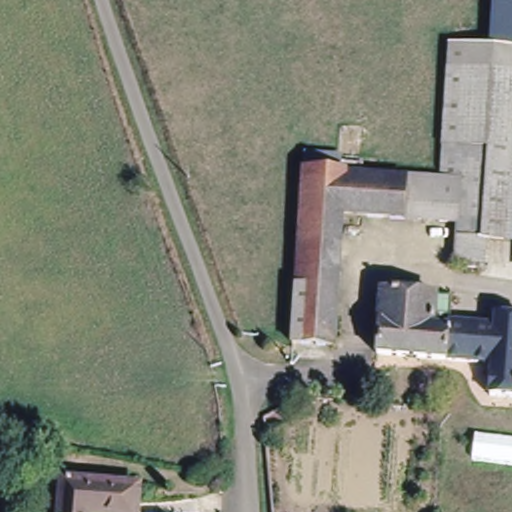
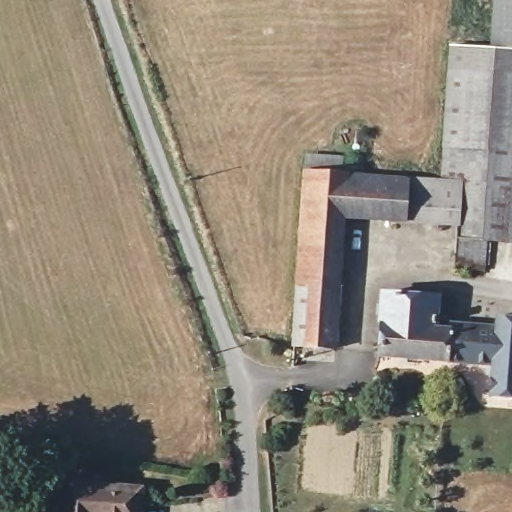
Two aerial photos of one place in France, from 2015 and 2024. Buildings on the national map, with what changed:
unchanged [(512,0),(512,47),(488,46),(492,0),(512,0)]
unchanged [(488,46),(512,47),(512,218),(510,243),(486,241),(482,271),(452,268),(455,227),(458,176),(437,175),(445,43),(488,46)]
unchanged [(402,222),(342,217),(333,350),(287,345),(301,167),(405,176),(402,222)]
unchanged [(458,176),(455,227),(402,222),(405,176),(405,172),(437,175),(458,176)]
unchanged [(512,243),(510,243),(512,218),(512,243)]
unchanged [(455,322),(497,322),(496,317),(512,317),(512,399),(490,397),(491,366),(377,355),(382,290),(454,297),(455,322)]
unchanged [(142,484),(140,512),(55,512),(57,477),(142,484)]

